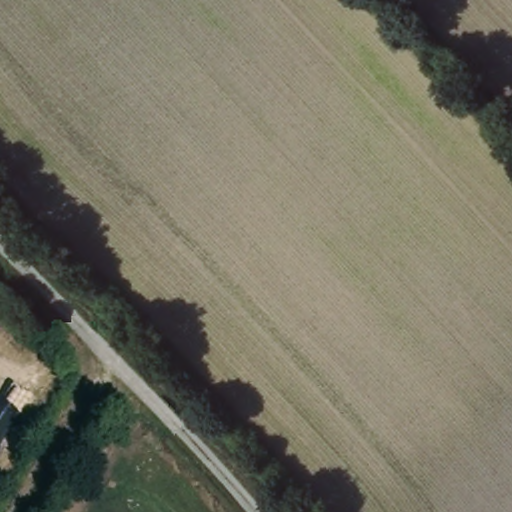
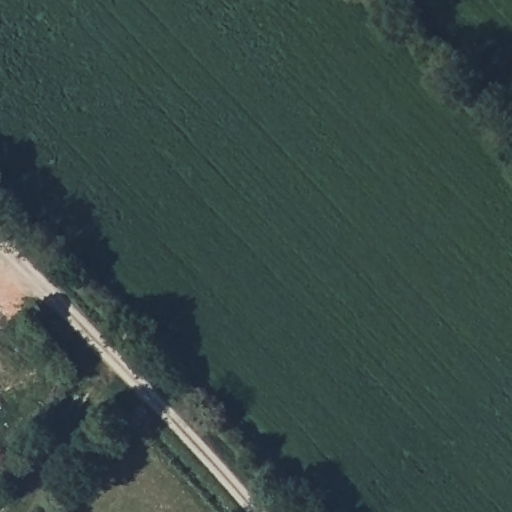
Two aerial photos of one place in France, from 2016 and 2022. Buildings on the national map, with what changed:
[]

